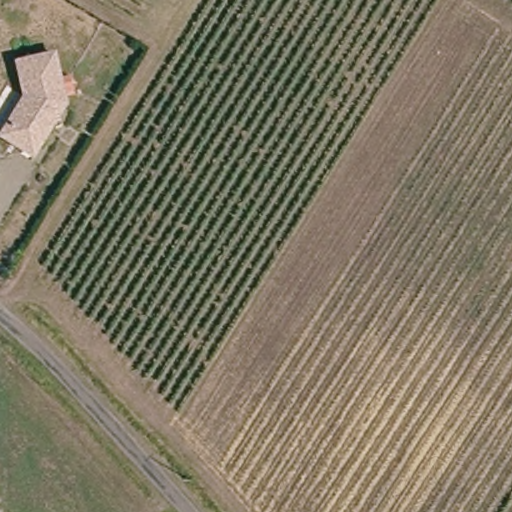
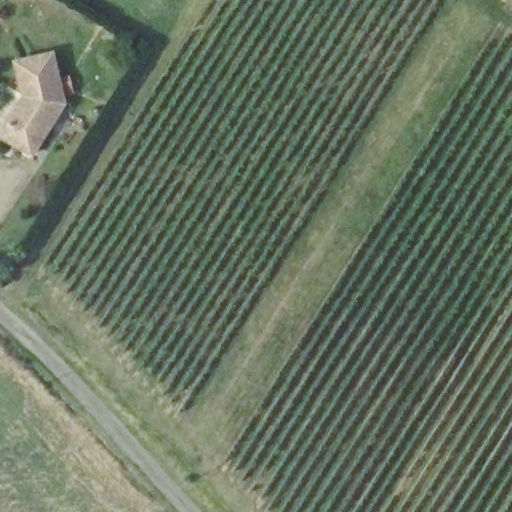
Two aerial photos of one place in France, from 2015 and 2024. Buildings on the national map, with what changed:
unchanged [(7,127),(27,99),(20,66),(55,57),(67,106),(64,111),(55,123),(30,158),(15,147),(0,136),(7,127)]

